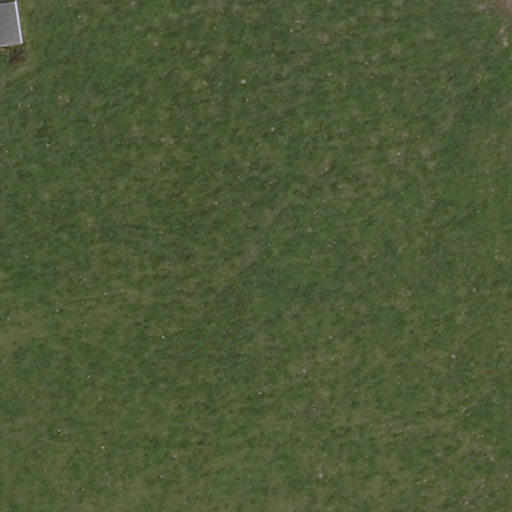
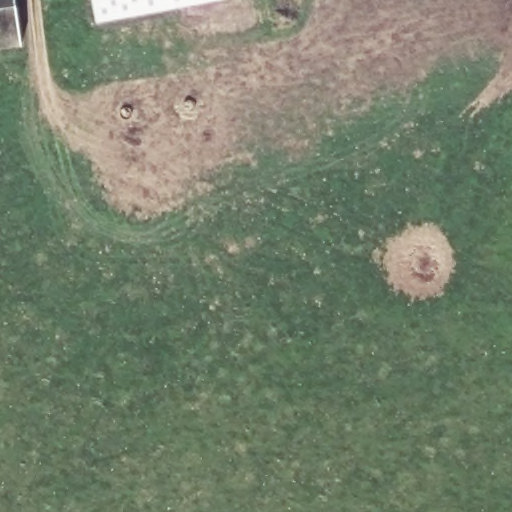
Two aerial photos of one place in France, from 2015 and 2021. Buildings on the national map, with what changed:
unchanged [(19,51),(0,54),(0,0),(12,0),(19,51)]
new [(99,21),(95,0),(215,0),(99,21)]

